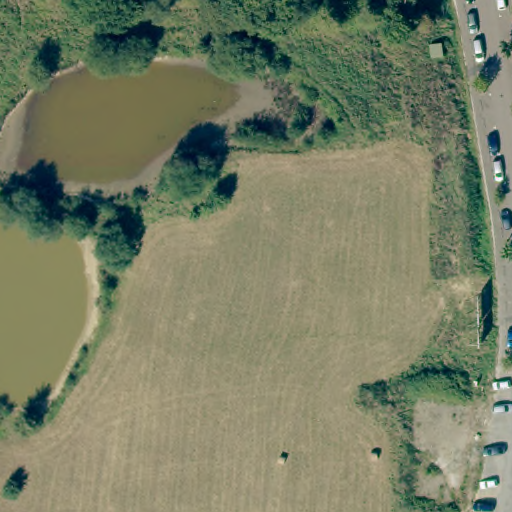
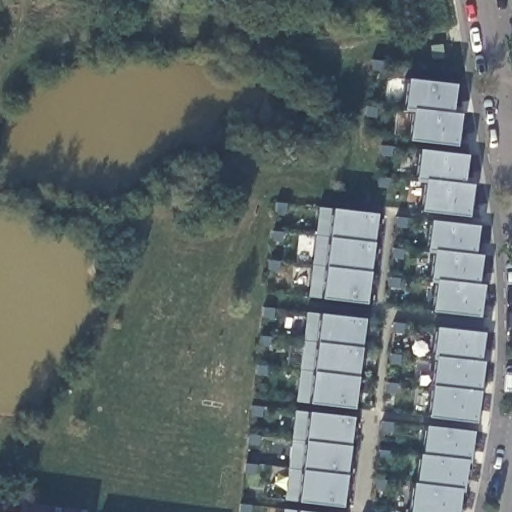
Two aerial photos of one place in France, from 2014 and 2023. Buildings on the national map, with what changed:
new [(407,111),(400,110),(405,79),(452,83),(448,111),(458,114),(452,145),(406,140),(407,111)]
new [(463,154),(460,181),(469,183),(465,214),(418,210),(421,182),(413,180),(415,147),(463,154)]
new [(318,296),(306,295),(316,207),(328,208),(372,212),(362,301),(318,296)]
new [(475,225),(472,254),(479,255),(475,282),(480,283),(477,315),(429,310),(431,283),(425,282),(430,252),(423,250),(427,219),(475,225)]
new [(305,401),(295,400),(305,313),(317,313),(360,318),(350,407),(305,401)]
new [(477,359),(480,360),(476,389),(473,420),(425,415),(433,355),(430,354),(434,326),(480,332),(477,359)]
new [(295,501),(284,500),(294,412),(306,411),(349,415),(339,506),(295,501)]
new [(410,481),(411,482),(415,452),(418,452),(422,424),(470,429),(466,460),(464,460),(459,491),(456,490),(453,512),(405,512),(410,481)]
new [(282,510),(307,512),(282,512),(282,510)]

